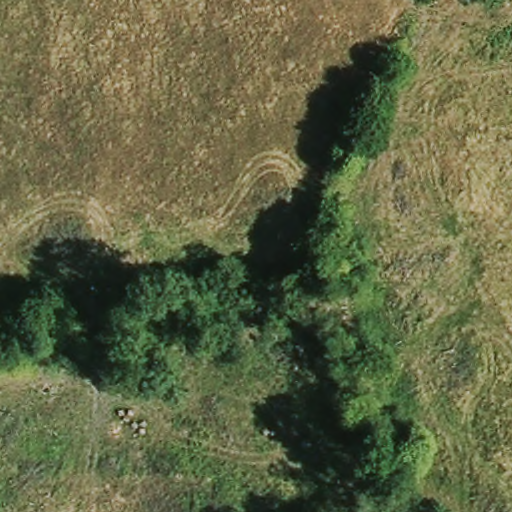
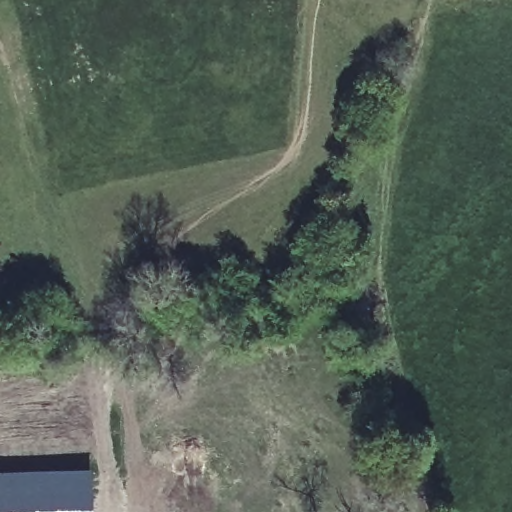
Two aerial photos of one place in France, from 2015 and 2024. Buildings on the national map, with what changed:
new [(90,466),(91,512),(0,512),(0,470),(32,468),(90,466)]

